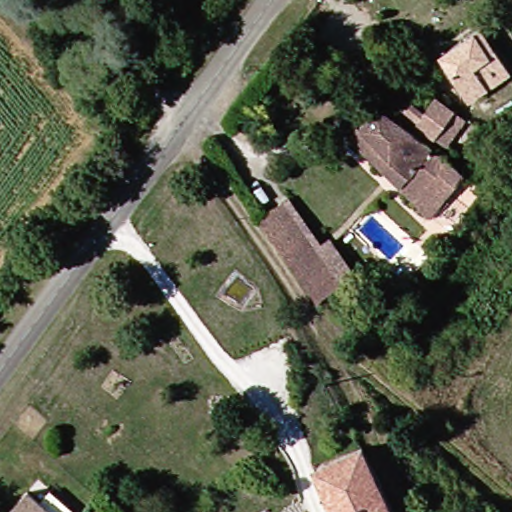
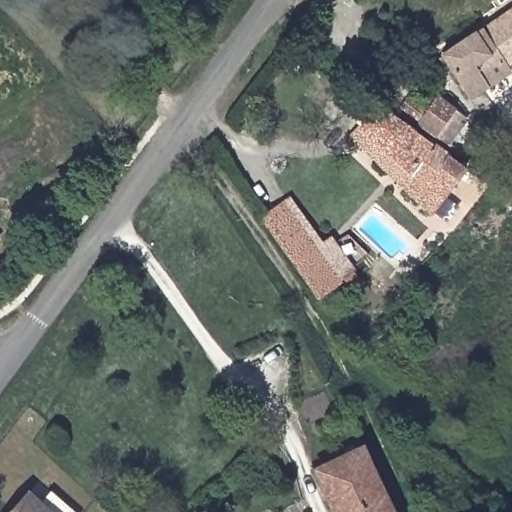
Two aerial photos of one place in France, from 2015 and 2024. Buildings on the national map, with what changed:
new [(505,71),(490,50),(486,52),(472,32),(512,8),(512,65),(505,71)]
unchanged [(330,14),(354,31),(385,54),(376,67),(364,85),(339,88),(298,58),(330,14)]
unchanged [(472,32),(486,52),(490,50),(505,71),(465,100),(436,60),(472,32)]
unchanged [(404,123),(407,119),(394,109),(401,100),(415,110),(426,95),(464,125),(445,154),(404,123)]
unchanged [(461,173),(425,216),(394,190),(407,174),(362,132),(380,109),(461,173)]
unchanged [(355,142),(362,132),(407,174),(394,190),(355,142)]
unchanged [(280,202),(338,286),(310,305),(278,259),(252,220),(280,202)]
unchanged [(309,470),(360,447),(388,512),(327,512),(309,470)]
unchanged [(31,487),(44,498),(55,486),(60,491),(84,512),(10,512),(31,487)]

